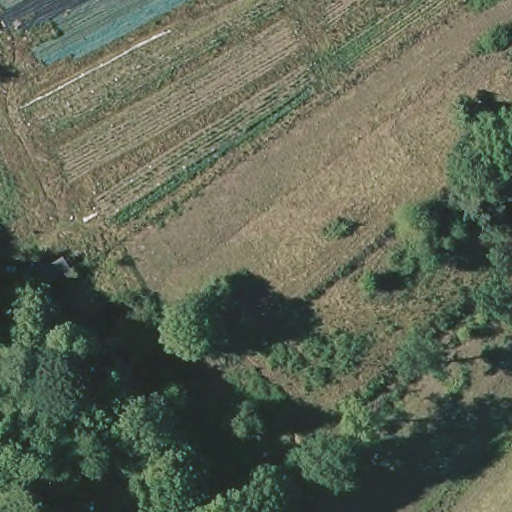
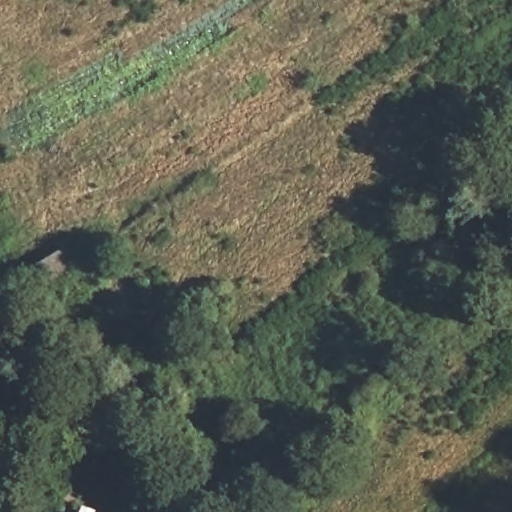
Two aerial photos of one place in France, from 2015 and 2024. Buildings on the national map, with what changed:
unchanged [(78,272),(36,299),(23,277),(64,251),(78,272)]

